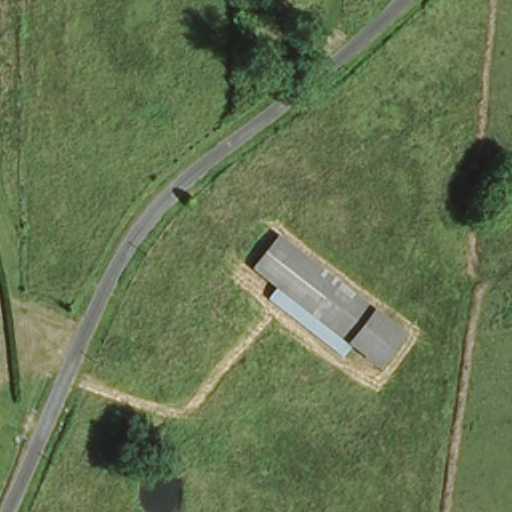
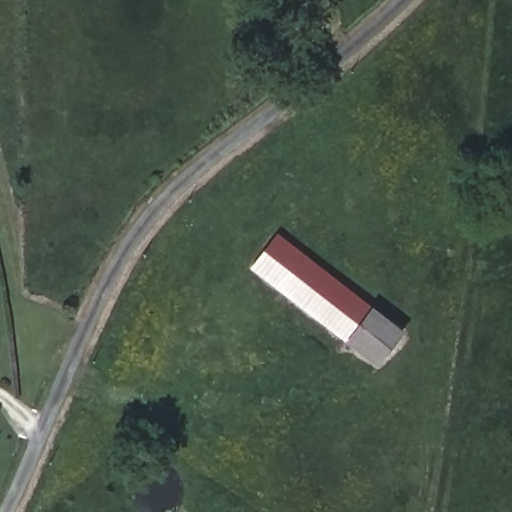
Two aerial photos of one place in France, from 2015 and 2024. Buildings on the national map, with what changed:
unchanged [(276,232),(376,310),(405,331),(378,367),(355,350),(344,356),(268,300),(276,289),(250,270),(276,232)]

